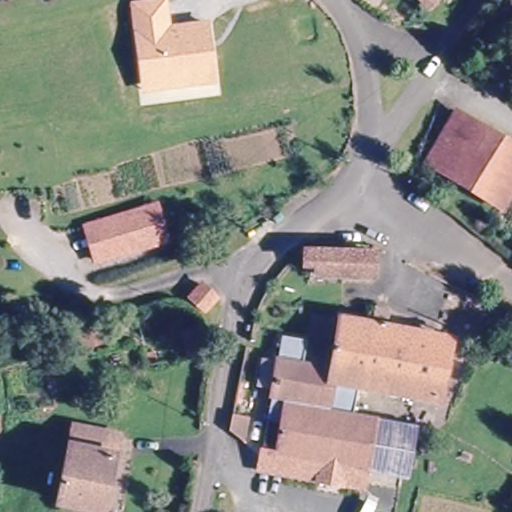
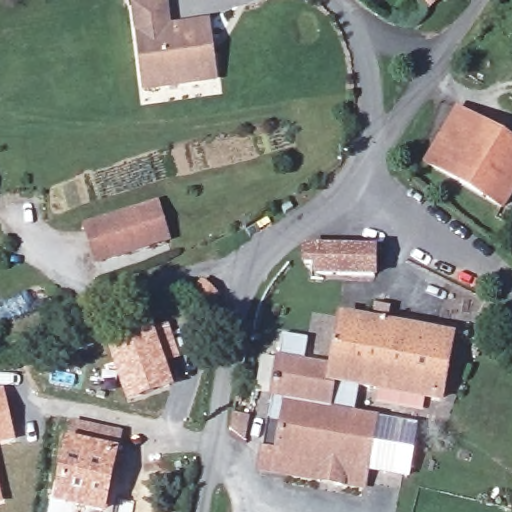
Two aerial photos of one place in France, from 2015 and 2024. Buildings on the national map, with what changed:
unchanged [(169,0),(170,26),(210,20),(218,84),(142,94),(130,1),(142,0),(169,0)]
unchanged [(512,144),(512,186),(500,205),(425,160),(455,108),(512,144)]
unchanged [(86,225),(97,222),(157,210),(164,243),(104,256),(92,258),(86,225)]
unchanged [(320,275),(321,260),(306,260),(307,246),(377,247),(376,276),(320,275)]
unchanged [(371,318),(372,307),(386,309),(385,321),(451,332),(450,337),(470,341),(466,364),(445,360),(435,410),(413,407),(416,394),(393,390),(356,383),(327,377),(328,365),(337,312),(371,318)]
new [(168,322),(182,359),(167,365),(175,387),(127,405),(106,340),(168,322)]
unchanged [(277,450),(280,418),(267,417),(277,332),(302,336),(298,360),(328,365),(327,377),(356,383),(351,410),(376,415),(368,464),(360,463),(317,456),(277,450)]
new [(4,388),(17,439),(0,445),(0,389),(4,388)]
unchanged [(376,415),(389,417),(417,421),(417,425),(410,470),(368,464),(376,415)]
unchanged [(100,512),(56,503),(72,427),(117,437),(100,512)]
unchanged [(317,456),(360,463),(368,464),(365,491),(256,475),(262,450),(277,450),(317,456)]
new [(3,502),(0,503),(0,488),(3,502)]

